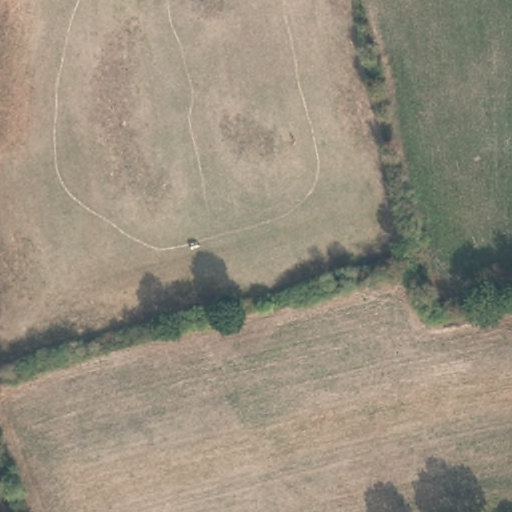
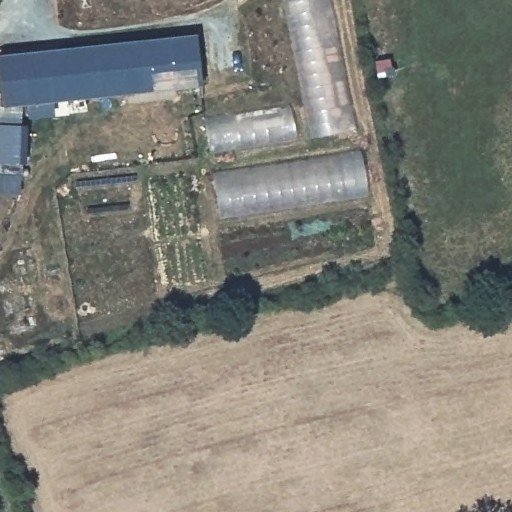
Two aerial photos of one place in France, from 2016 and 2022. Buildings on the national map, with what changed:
new [(201,119),(303,105),(283,0),(329,0),(353,130),(207,153),(201,119)]
new [(202,87),(2,107),(0,86),(0,54),(196,35),(202,87)]
new [(26,163),(0,162),(0,124),(27,125),(26,163)]
new [(214,177),(360,153),(366,194),(218,218),(214,177)]

